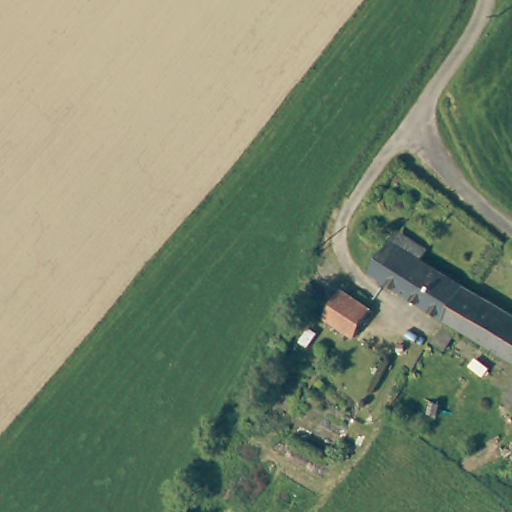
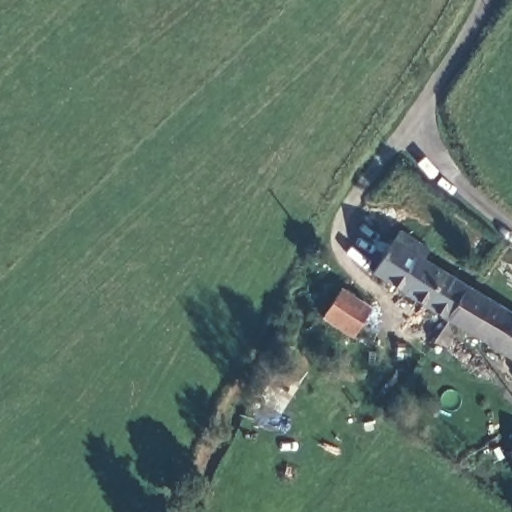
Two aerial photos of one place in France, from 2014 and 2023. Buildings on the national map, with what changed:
unchanged [(446,316),(444,315),(366,267),(387,236),(392,239),(398,229),(423,244),(416,254),(465,283),(468,285),(512,313),(512,357),(446,316)]
unchanged [(340,289),(369,309),(351,337),(320,318),(340,289)]

